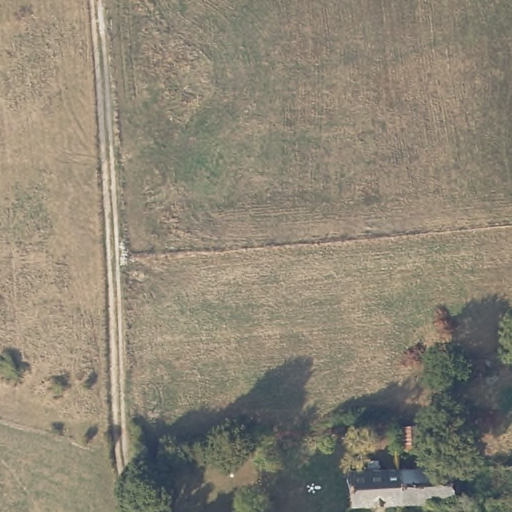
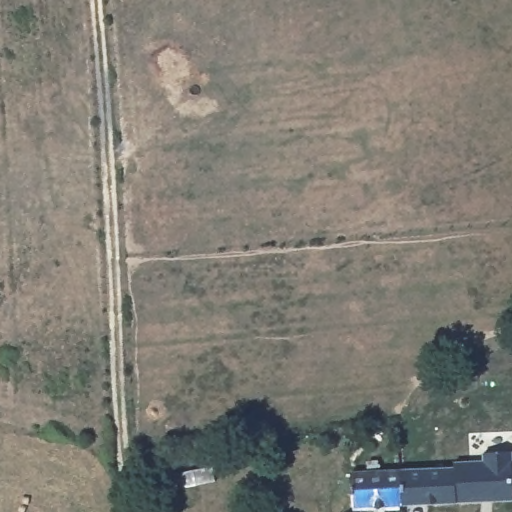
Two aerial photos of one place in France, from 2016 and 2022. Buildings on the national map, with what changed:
new [(452,467),(452,461),(483,459),(482,451),(512,450),(512,499),(455,504),(452,467)]
demolished [(493,498),(491,462),(512,461),(512,498),(493,498)]
unchanged [(452,467),(455,504),(400,507),(397,470),(452,467)]
unchanged [(349,510),(347,473),(397,470),(400,507),(349,510)]

